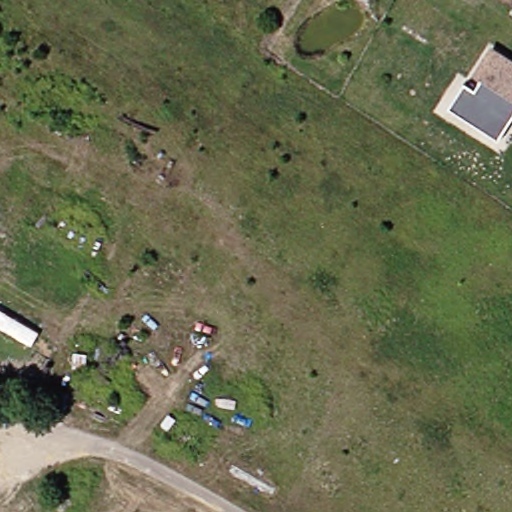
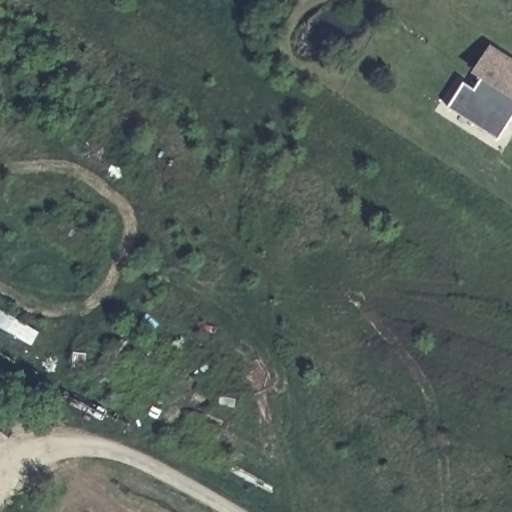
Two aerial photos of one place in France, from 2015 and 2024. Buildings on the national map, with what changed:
unchanged [(499,136),(448,103),(463,76),(476,85),(483,70),(476,67),(491,42),(512,55),(512,115),(499,136)]

